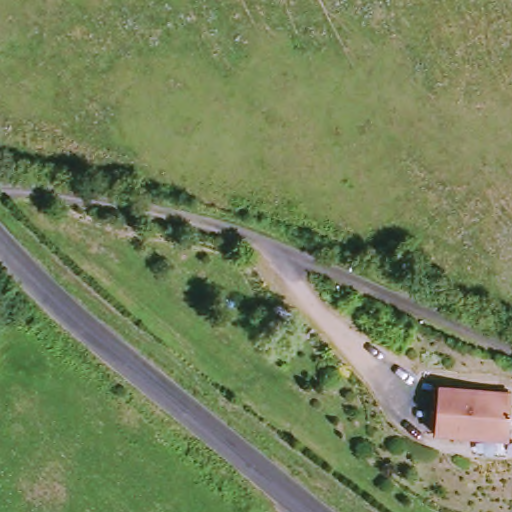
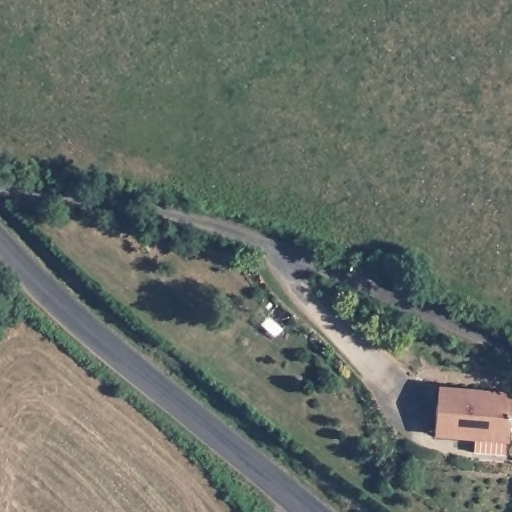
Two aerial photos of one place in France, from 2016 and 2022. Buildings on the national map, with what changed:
unchanged [(473,435),(436,432),(439,385),(489,389),(488,394),(495,394),(498,391),(512,392),(512,406),(510,433),(509,438),(473,435)]

